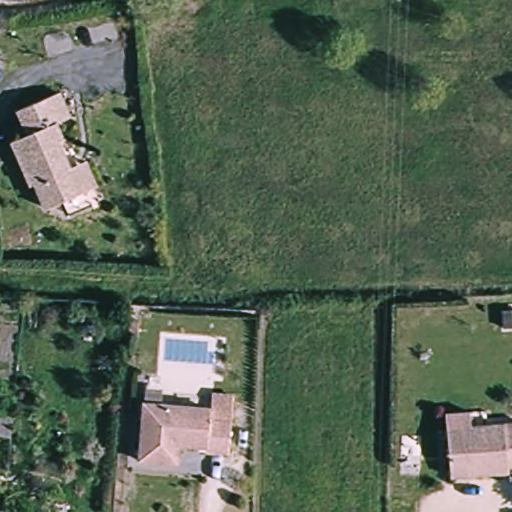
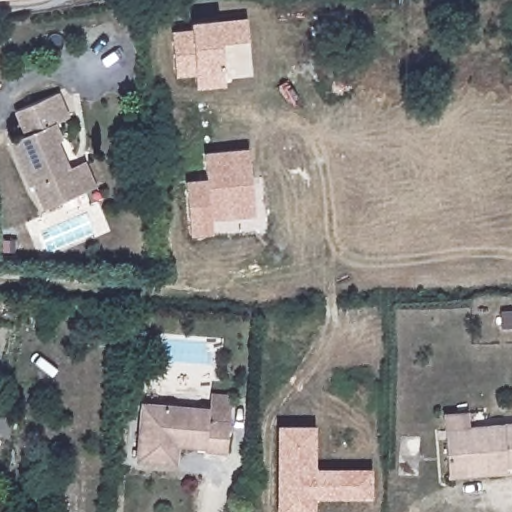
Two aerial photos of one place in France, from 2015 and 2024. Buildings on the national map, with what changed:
new [(176,75),(174,61),(195,60),(190,23),(218,20),(218,23),(246,20),(251,74),(225,76),(225,83),(198,87),(196,73),(176,75)]
unchanged [(96,189),(85,193),(43,211),(33,185),(26,187),(8,144),(20,138),(10,113),(55,94),(65,118),(54,123),(60,138),(56,140),(69,170),(75,168),(87,164),(96,189)]
new [(212,220),(213,234),(191,237),(186,180),(208,177),(204,151),(248,148),(255,216),(212,220)]
unchanged [(138,318),(136,331),(126,330),(128,317),(138,318)]
unchanged [(173,463),(167,463),(135,459),(141,402),(208,409),(210,393),(231,395),(229,421),(226,454),(203,451),(176,448),(173,463)]
unchanged [(13,431),(0,429),(0,410),(14,412),(13,431)]
unchanged [(446,416),(468,414),(469,427),(512,423),(512,466),(504,467),(505,474),(449,478),(446,416)]
new [(314,512),(279,512),(279,428),(314,427),(314,470),(371,470),(370,498),(315,498),(314,512)]

